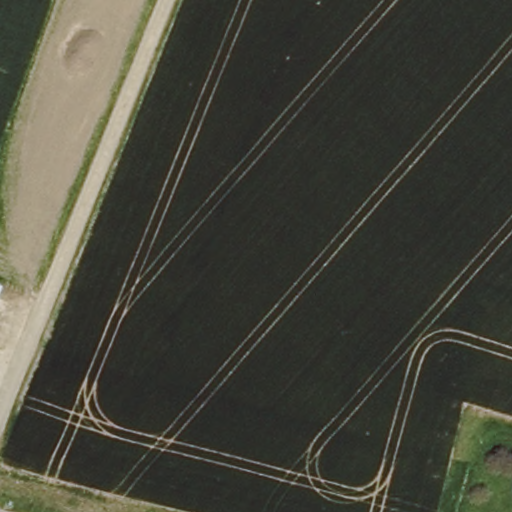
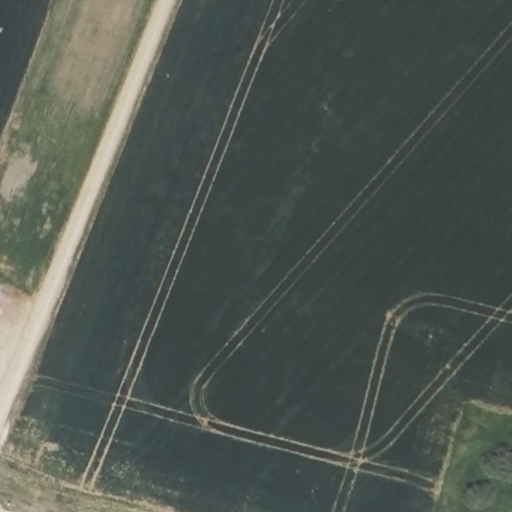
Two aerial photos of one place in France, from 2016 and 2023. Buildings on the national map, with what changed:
unchanged [(5,292),(0,302),(0,290),(5,292)]

